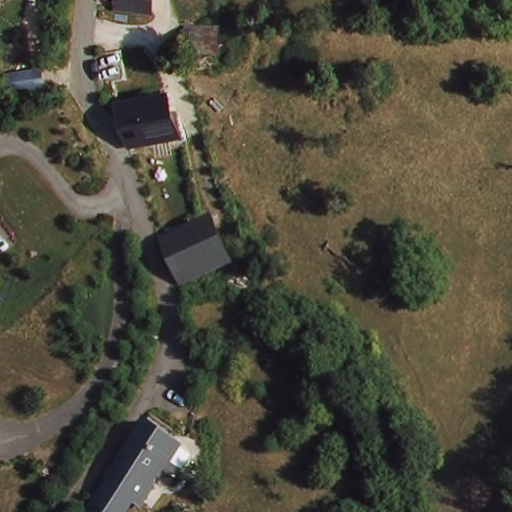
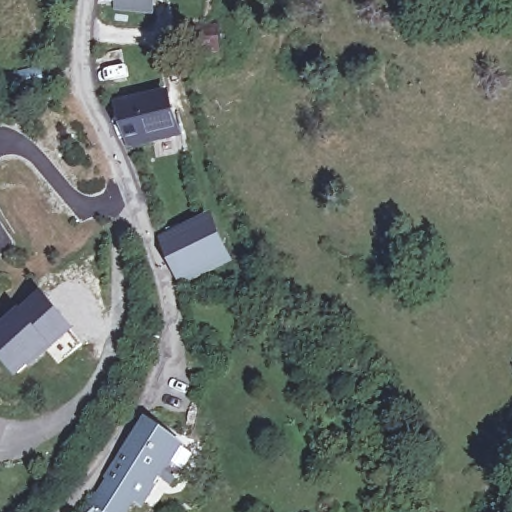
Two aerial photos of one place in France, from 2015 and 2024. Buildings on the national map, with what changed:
unchanged [(206,24),(209,24),(215,24),(217,53),(186,55),(183,26),(206,24)]
unchanged [(42,70),(44,87),(13,91),(10,75),(42,70)]
unchanged [(191,130),(183,131),(133,139),(127,114),(122,99),(175,90),(179,109),(186,107),(191,130)]
unchanged [(206,217),(222,257),(176,276),(160,235),(206,217)]
new [(81,345),(58,363),(46,348),(18,372),(0,350),(0,335),(44,300),(81,345)]
unchanged [(147,418),(182,442),(191,449),(193,455),(183,469),(189,473),(187,477),(183,475),(179,480),(163,470),(143,500),(134,495),(123,512),(83,512),(93,497),(147,418)]

